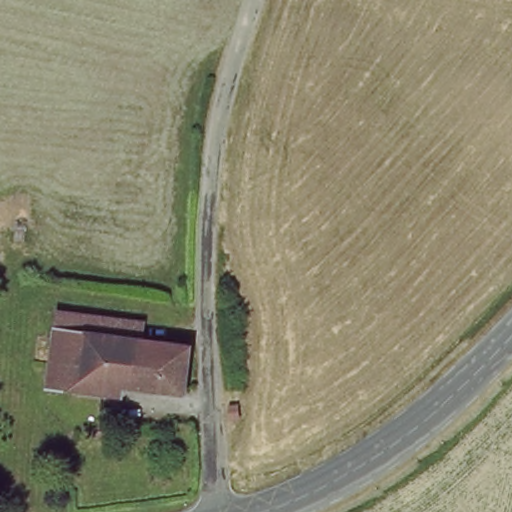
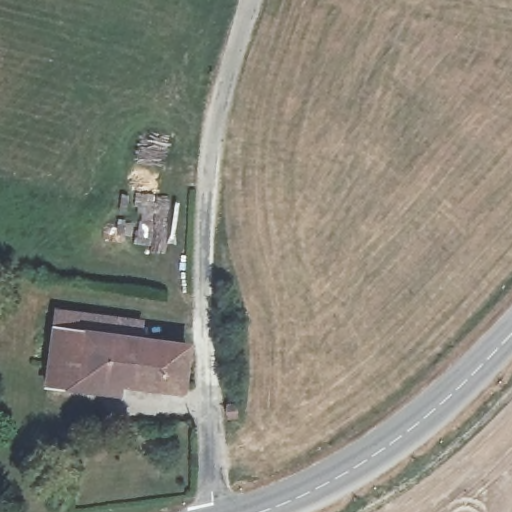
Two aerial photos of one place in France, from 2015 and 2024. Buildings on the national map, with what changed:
unchanged [(52,324),(55,307),(86,311),(135,319),(132,336),(184,345),(176,386),(101,375),(99,389),(73,385),(43,381),(52,324)]

